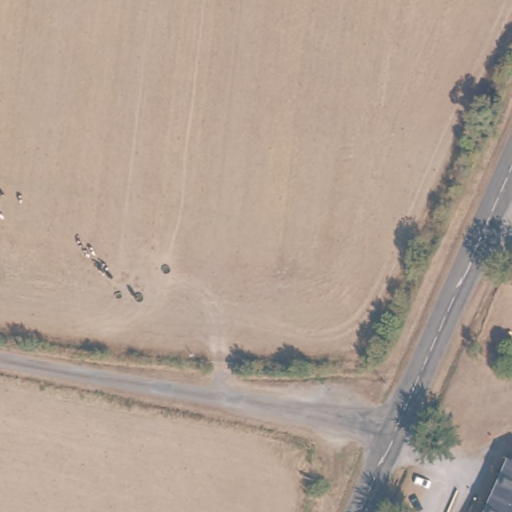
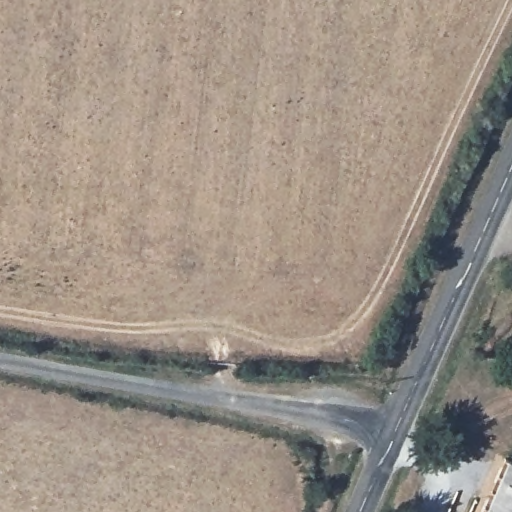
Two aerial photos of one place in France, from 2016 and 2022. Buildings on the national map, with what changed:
unchanged [(492,512),(512,472),(512,512),(492,512)]

